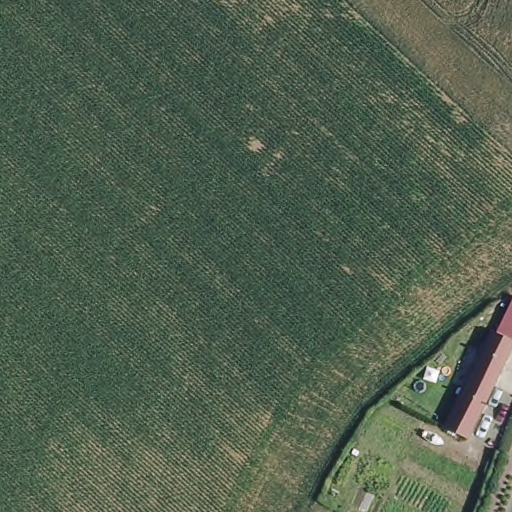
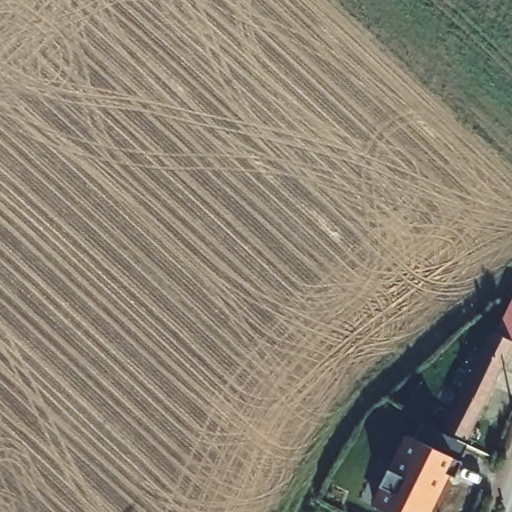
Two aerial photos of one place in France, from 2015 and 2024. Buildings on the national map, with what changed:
unchanged [(505,301),(512,304),(512,342),(461,444),(440,435),(438,434),(467,378),(465,376),(456,372),(467,351),(478,356),(505,301)]
new [(410,437),(462,464),(455,479),(445,475),(427,512),(383,512),(375,508),(410,437)]
unchanged [(469,442),(474,444),(476,446),(492,451),(490,457),(477,452),(476,455),(465,451),(467,446),(469,442)]

